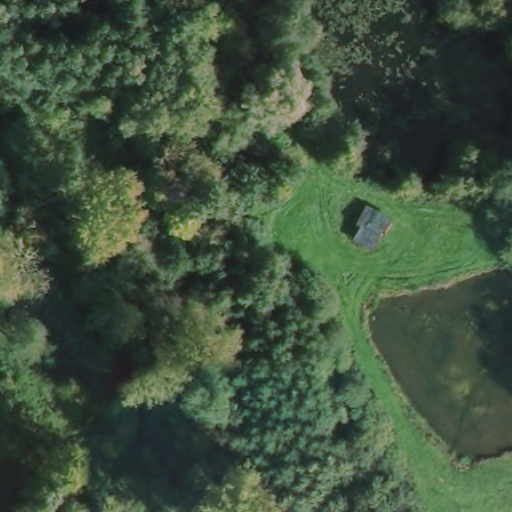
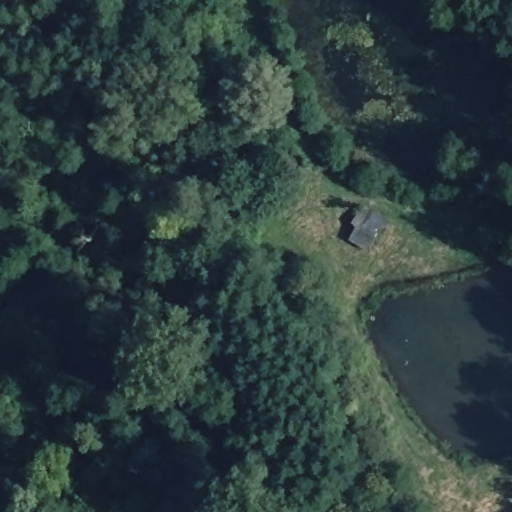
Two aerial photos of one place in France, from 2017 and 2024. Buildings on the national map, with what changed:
unchanged [(395,220),(375,253),(352,239),(355,236),(349,230),(367,203),(395,220)]

